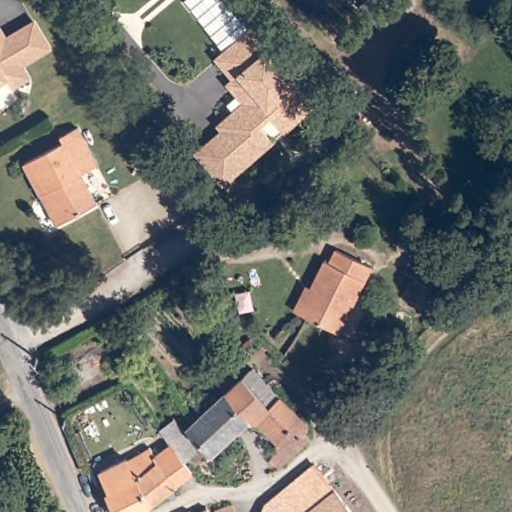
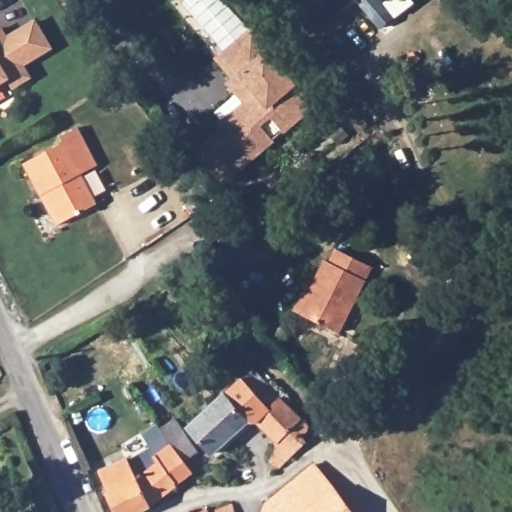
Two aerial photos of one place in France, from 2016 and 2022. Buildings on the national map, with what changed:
unchanged [(248,26),(267,49),(294,86),(313,115),(286,137),(272,117),(261,124),(273,147),(222,187),(195,152),(218,130),(215,125),(241,102),(225,83),(230,77),(213,56),(223,48),(184,0),(225,0),(248,26)]
unchanged [(24,67),(30,78),(11,88),(6,80),(0,84),(0,27),(1,26),(7,36),(35,19),(53,50),(24,67)]
unchanged [(42,194),(24,159),(56,143),(63,141),(59,132),(77,123),(86,141),(96,162),(82,171),(100,201),(63,220),(57,224),(42,194)]
unchanged [(312,282),(326,257),(331,257),(339,245),(371,263),(336,328),(298,307),(293,304),(306,280),(312,282)]
unchanged [(440,270),(431,282),(408,268),(417,256),(440,270)]
unchanged [(184,428),(202,411),(256,361),(310,424),(285,443),(277,438),(277,427),(264,411),(253,411),(225,436),(204,457),(200,451),(189,458),(197,472),(180,483),(160,448),(169,442),(160,425),(176,415),(184,428)]
unchanged [(132,453),(149,501),(121,512),(116,512),(102,473),(107,469),(101,452),(127,440),(132,453)]
unchanged [(156,440),(160,448),(180,483),(149,501),(132,453),(156,440)]
unchanged [(359,512),(268,512),(264,506),(276,489),(287,483),(300,473),(322,458),(359,512)]
unchanged [(216,512),(212,503),(233,499),(236,512),(216,512)]
unchanged [(191,507),(207,504),(210,512),(178,512),(180,511),(191,507)]

